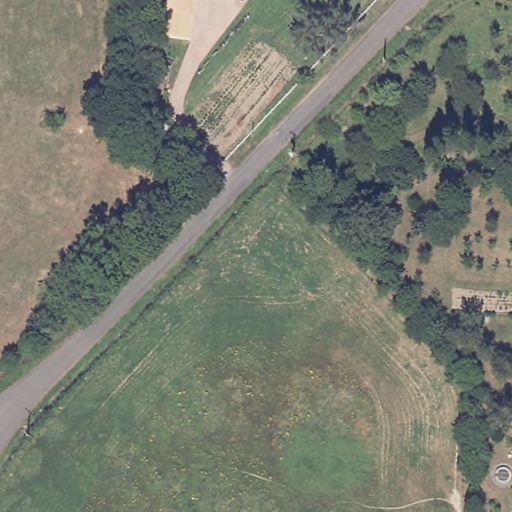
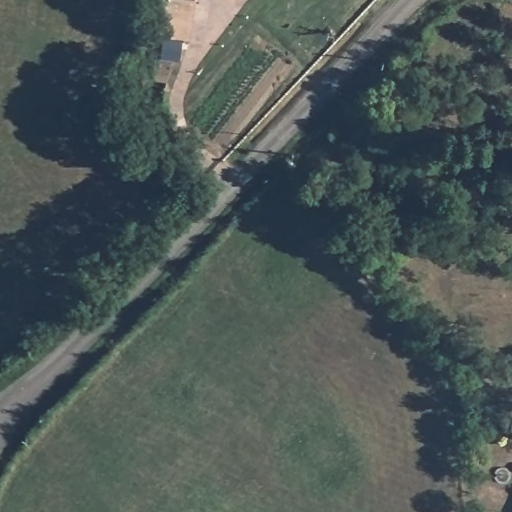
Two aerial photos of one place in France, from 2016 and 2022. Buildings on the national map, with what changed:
unchanged [(199,0),(193,37),(159,30),(163,0),(199,0)]

